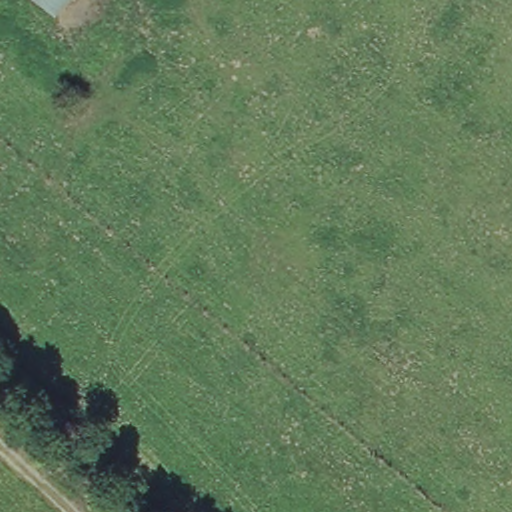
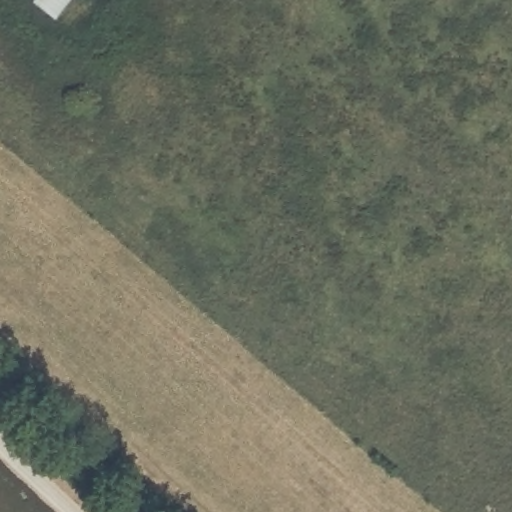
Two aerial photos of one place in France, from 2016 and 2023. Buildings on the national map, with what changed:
unchanged [(53,23),(30,1),(30,0),(74,0),(53,23)]

